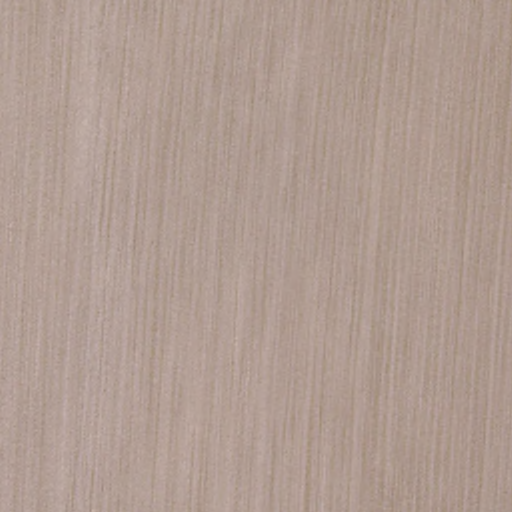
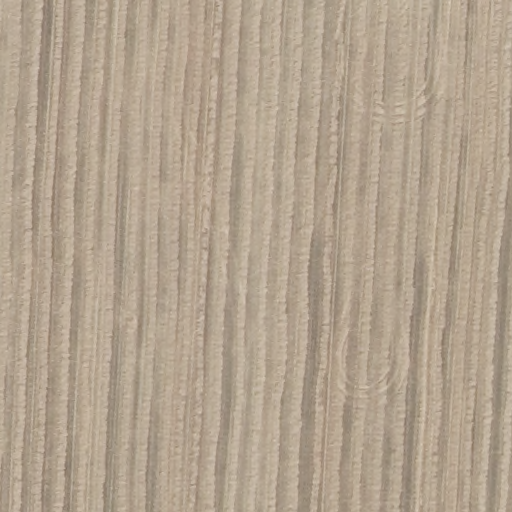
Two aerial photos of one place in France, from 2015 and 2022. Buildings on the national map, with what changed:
[]

